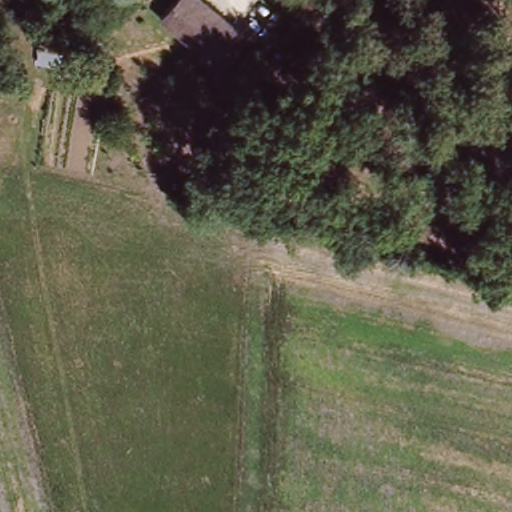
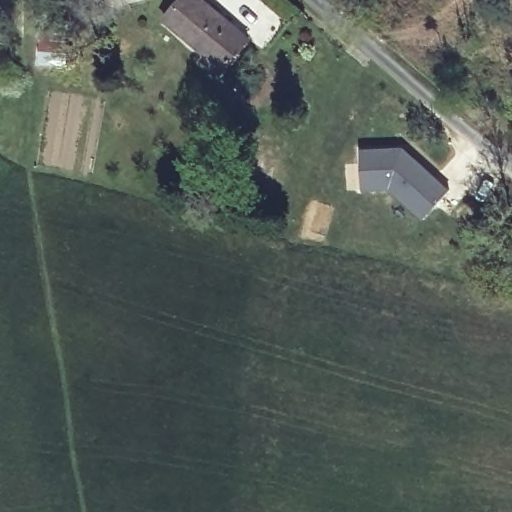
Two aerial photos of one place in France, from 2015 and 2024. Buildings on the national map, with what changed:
unchanged [(178,15),(191,0),(211,0),(255,38),(228,69),(211,55),(215,49),(178,15)]
new [(413,204),(392,185),(365,187),(363,148),(405,146),(407,148),(417,155),(452,188),(438,203),(426,216),(413,204)]

